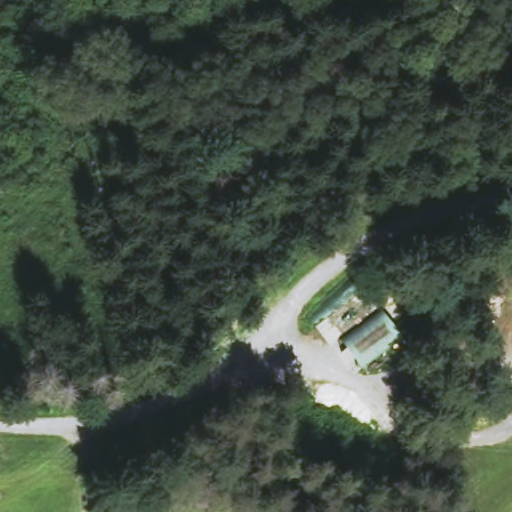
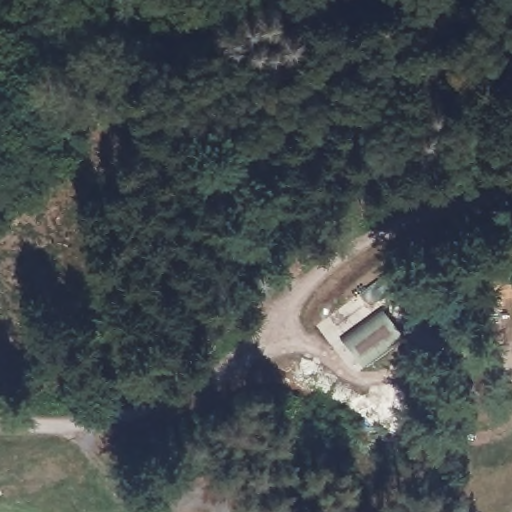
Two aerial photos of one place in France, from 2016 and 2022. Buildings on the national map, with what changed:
unchanged [(398,333),(360,366),(336,340),(378,308),(398,333)]

